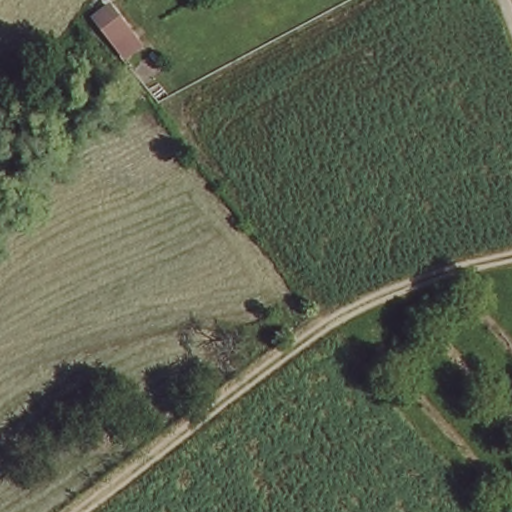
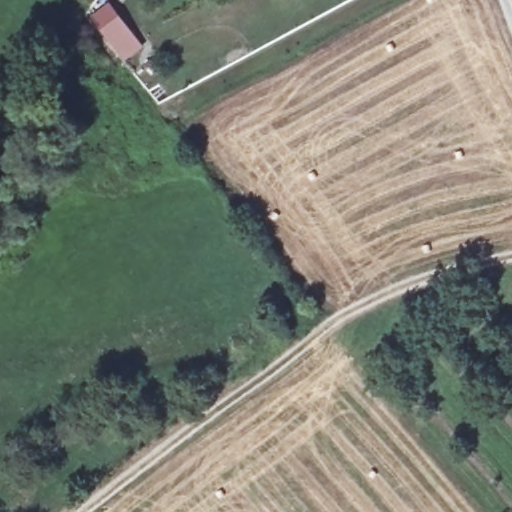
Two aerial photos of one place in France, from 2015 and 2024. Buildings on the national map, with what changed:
unchanged [(138,37),(112,55),(88,20),(115,2),(138,37)]

